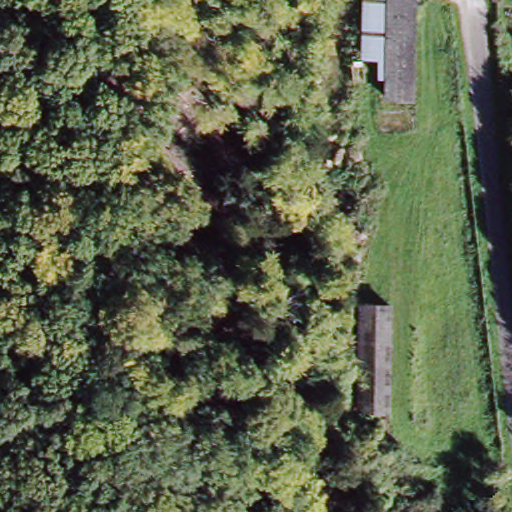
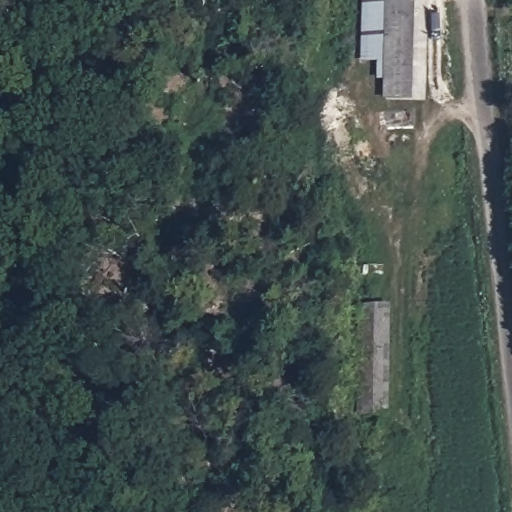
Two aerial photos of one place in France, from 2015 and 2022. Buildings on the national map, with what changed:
unchanged [(416,100),(387,102),(383,7),(383,0),(412,0),(416,100)]
unchanged [(353,304),(387,303),(390,413),(357,414),(353,304)]

